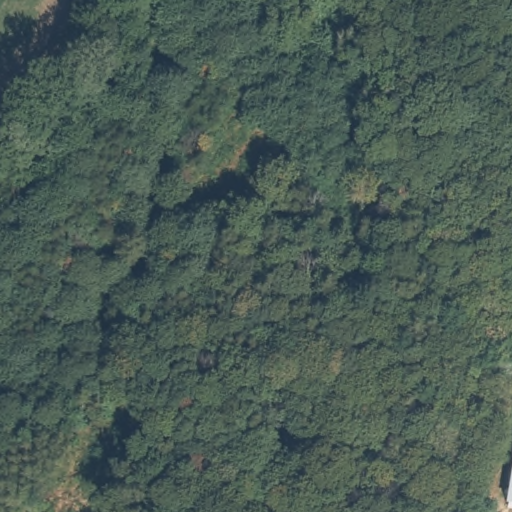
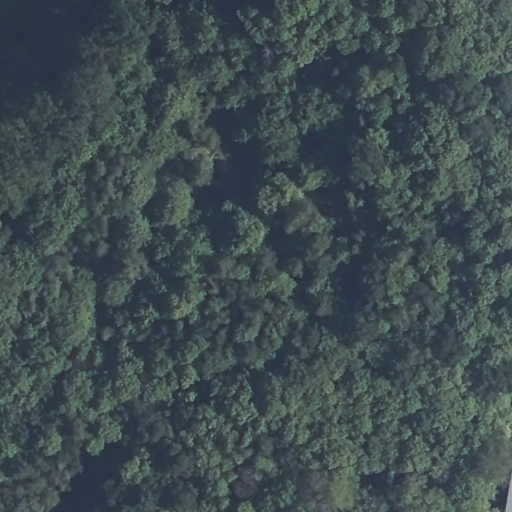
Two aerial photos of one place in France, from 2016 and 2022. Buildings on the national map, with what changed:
unchanged [(505,508),(512,466),(512,509),(505,508)]

